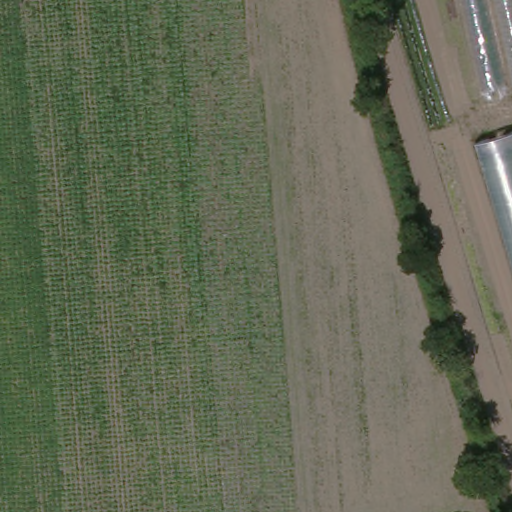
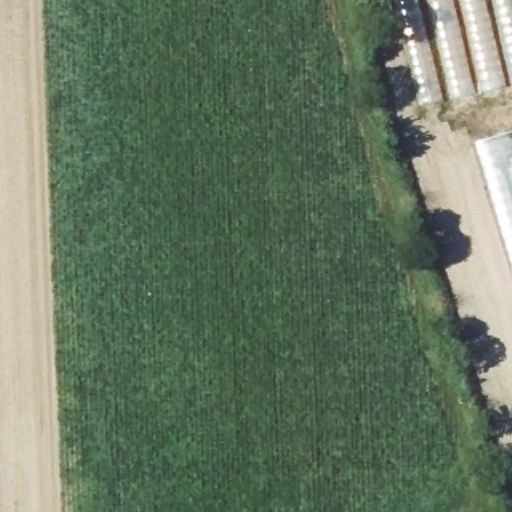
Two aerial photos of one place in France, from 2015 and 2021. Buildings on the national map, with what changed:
new [(395,0),(512,0),(512,86),(420,105),(395,0)]
unchanged [(512,137),(512,307),(466,152),(512,137)]

